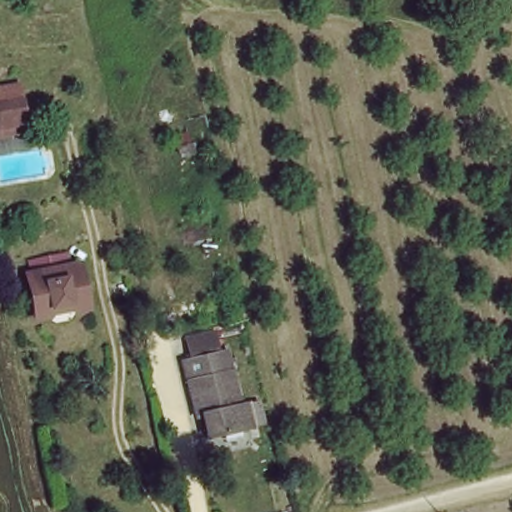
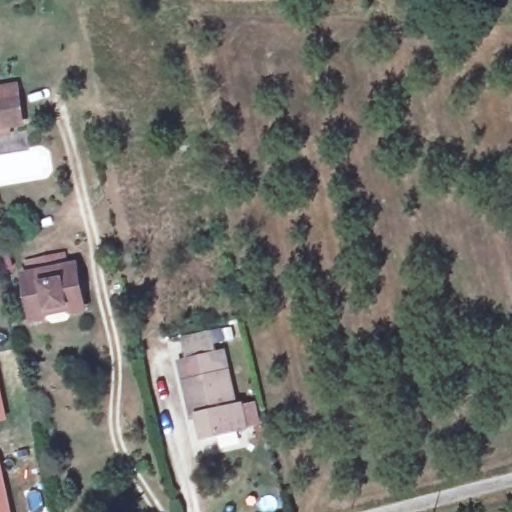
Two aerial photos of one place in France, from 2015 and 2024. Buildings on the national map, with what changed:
unchanged [(20,94),(23,111),(6,114),(7,122),(0,124),(0,99),(20,94)]
unchanged [(68,256),(78,301),(29,311),(20,267),(68,256)]
unchanged [(216,349),(227,406),(234,406),(239,426),(197,436),(192,415),(187,415),(174,357),(216,349)]
new [(8,421),(0,422),(0,385),(8,421)]
new [(11,512),(0,512),(0,461),(11,512)]

